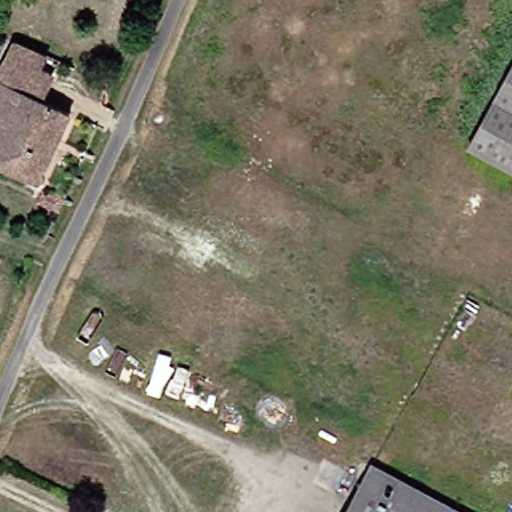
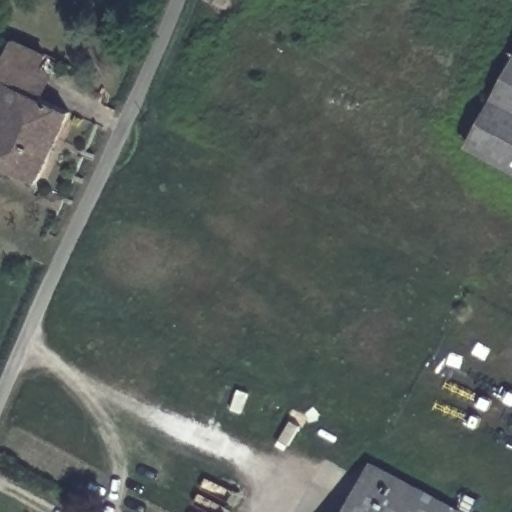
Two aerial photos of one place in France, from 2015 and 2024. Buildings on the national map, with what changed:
unchanged [(36,51),(28,69),(42,75),(34,94),(0,78),(0,41),(2,35),(36,51)]
unchanged [(512,46),(512,175),(458,147),(512,46)]
unchanged [(29,175),(0,161),(0,78),(34,94),(61,107),(29,175)]
unchanged [(40,200),(45,189),(64,198),(59,209),(40,200)]
unchanged [(458,512),(341,512),(367,463),(458,512)]

